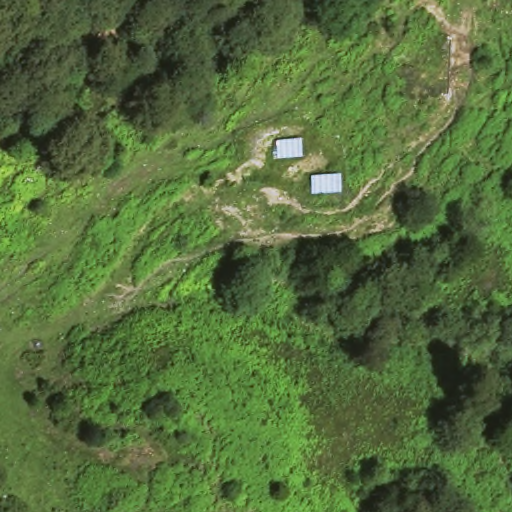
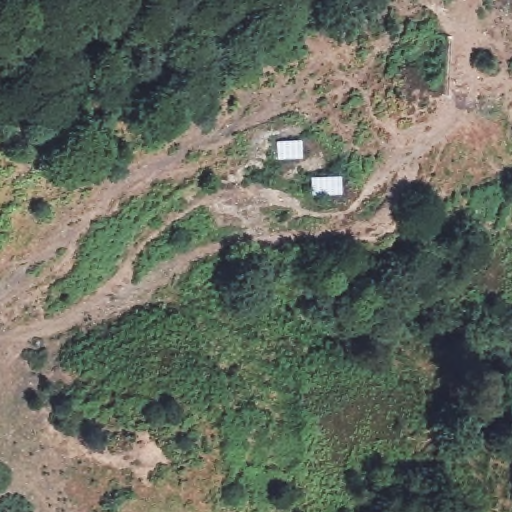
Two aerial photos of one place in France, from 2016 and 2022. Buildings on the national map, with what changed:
unchanged [(301,161),(273,161),(273,144),(302,141),(301,161)]
unchanged [(340,178),(341,195),(311,196),(310,179),(340,178)]

